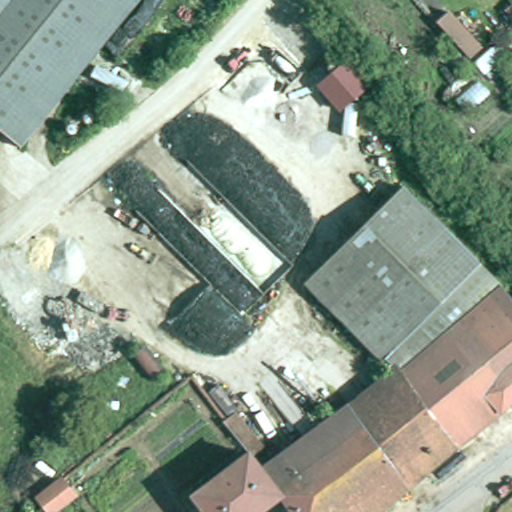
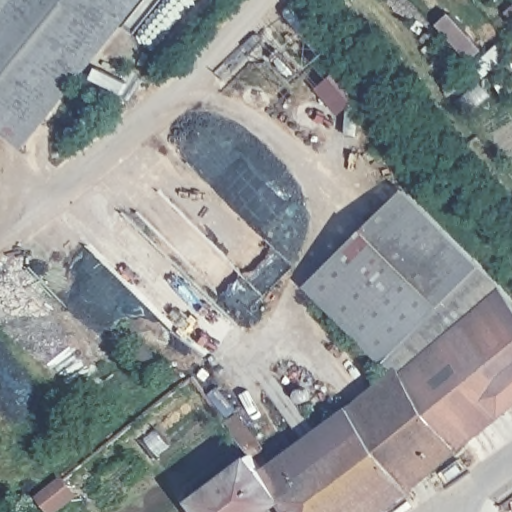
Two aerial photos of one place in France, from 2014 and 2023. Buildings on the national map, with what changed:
unchanged [(22,149),(0,130),(0,0),(143,0),(22,149)]
unchanged [(402,375),(397,370),(324,294),(315,285),(411,192),(468,250),(480,263),(509,293),(402,375)]
unchanged [(402,375),(509,293),(512,298),(512,413),(462,452),(402,375)]
unchanged [(297,455),(340,423),(402,375),(462,452),(389,512),(311,512),(327,500),(297,455)]
unchanged [(241,417),(267,450),(259,456),(233,423),(241,417)]
unchanged [(276,512),(207,512),(200,501),(257,458),(270,474),(293,457),(297,455),(327,500),(311,512),(298,512),(290,501),(276,512)]
unchanged [(80,499),(64,512),(51,512),(44,503),(68,484),(80,499)]

